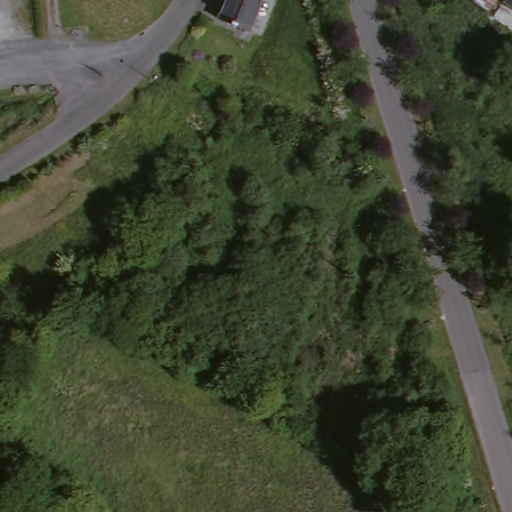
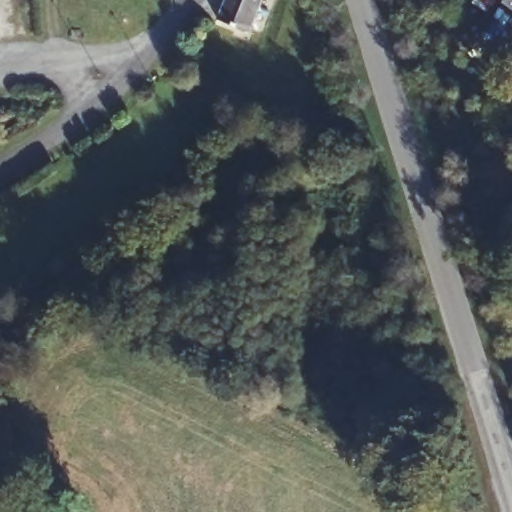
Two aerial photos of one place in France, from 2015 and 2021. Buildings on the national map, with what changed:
unchanged [(220,21),(228,0),(261,0),(250,30),(220,21)]
unchanged [(482,0),(498,0),(495,7),(482,0)]
unchanged [(508,2),(509,0),(512,0),(512,5),(508,2)]

